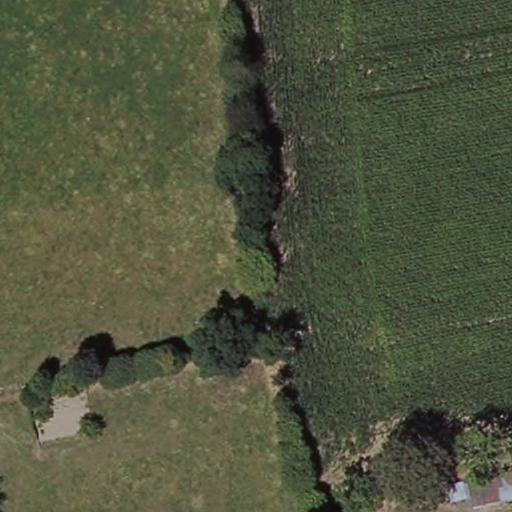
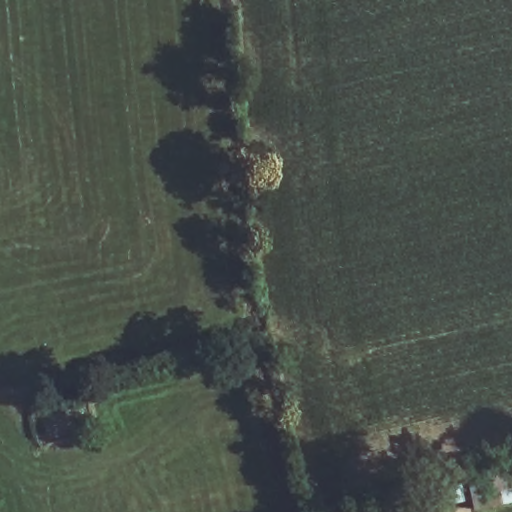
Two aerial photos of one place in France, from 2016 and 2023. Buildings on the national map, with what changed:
unchanged [(512,466),(512,497),(475,506),(474,495),(453,499),(450,480),(512,466)]
unchanged [(344,512),(339,512),(344,511),(344,512)]

